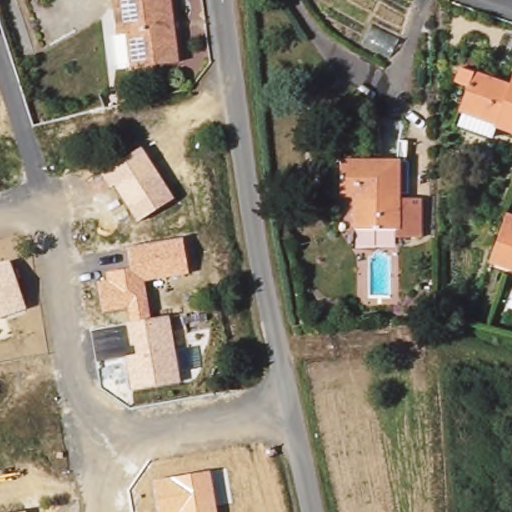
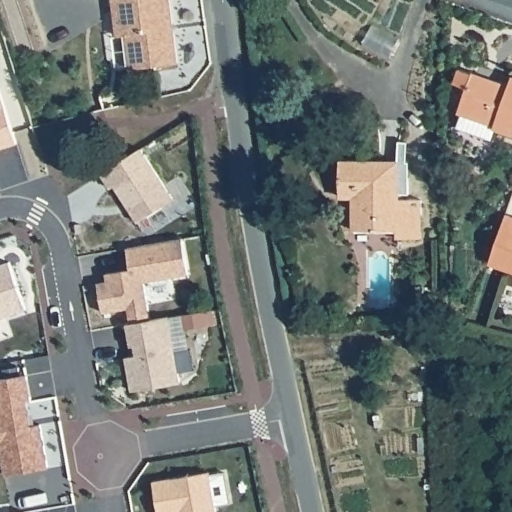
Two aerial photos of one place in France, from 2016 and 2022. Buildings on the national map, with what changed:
unchanged [(131,65),(127,34),(118,35),(114,0),(169,0),(176,60),(131,65)]
unchanged [(508,84),(512,76),(512,77),(512,131),(497,128),(498,120),(462,106),(467,83),(455,80),(458,70),(508,84)]
new [(21,146),(6,151),(0,153),(0,87),(3,86),(21,146)]
unchanged [(176,198),(138,222),(115,188),(111,190),(100,174),(142,146),(176,198)]
unchanged [(401,159),(400,197),(423,197),(422,234),(399,235),(398,226),(357,226),(358,206),(365,199),(363,191),(342,189),(343,159),(401,159)]
unchanged [(512,216),(512,273),(492,267),(508,216),(512,216)]
unchanged [(190,275),(145,283),(152,320),(170,316),(182,383),(133,393),(127,355),(135,354),(134,346),(130,346),(127,324),(130,323),(128,307),(102,312),(98,282),(107,280),(106,271),(131,267),(127,248),(182,238),(190,275)]
unchanged [(0,317),(0,263),(9,260),(26,308),(0,317)]
new [(27,402),(23,403),(25,418),(30,417),(32,428),(37,427),(44,471),(0,478),(0,381),(24,378),(27,402)]
unchanged [(209,472),(215,512),(159,512),(153,481),(209,472)]
unchanged [(27,512),(16,512),(27,510),(27,512)]

